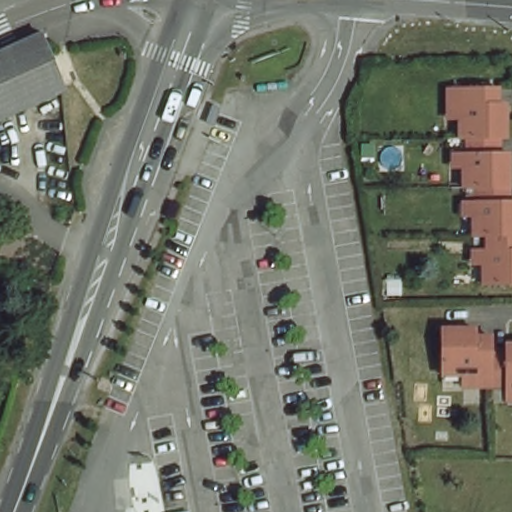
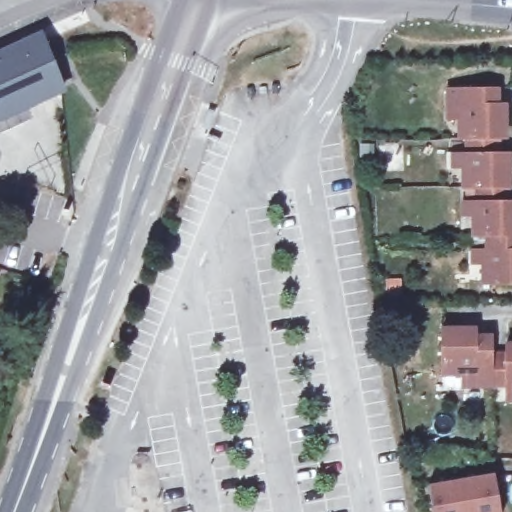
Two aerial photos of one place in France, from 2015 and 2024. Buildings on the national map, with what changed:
unchanged [(42,35),(61,88),(0,116),(0,54),(42,35)]
unchanged [(487,235),(474,235),(473,215),(463,215),(463,202),(473,202),(477,202),(477,187),(464,187),(463,167),(453,167),(453,154),(463,153),(467,153),(467,137),(458,138),(458,118),(447,118),(446,105),(446,88),(496,88),(496,104),(500,104),(504,104),(504,115),(505,137),(498,137),(498,153),(503,153),(508,153),(508,164),(508,201),(512,201),(512,283),(484,284),(483,264),(473,264),(473,250),(483,250),(487,250),(487,235)]
unchanged [(506,381),(475,381),(462,381),(461,369),(442,369),(442,324),(465,324),(475,323),(475,328),(475,331),(491,331),(491,349),(506,349),(506,344),(506,339),(512,339),(512,395),(507,395),(507,385),(506,381)]
new [(499,512),(432,512),(427,486),(494,474),(499,512)]

